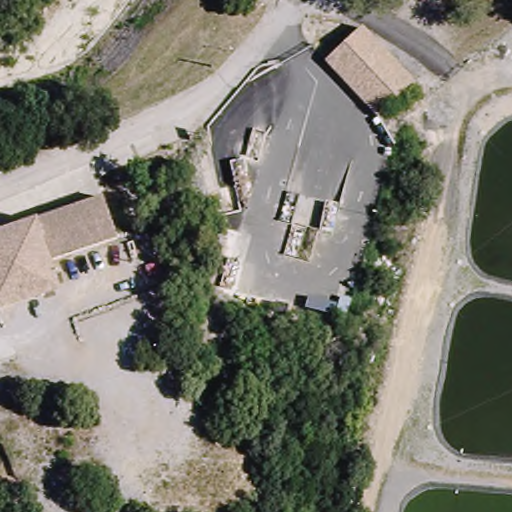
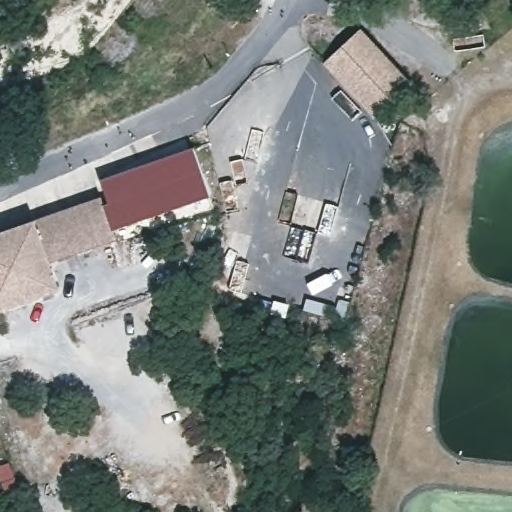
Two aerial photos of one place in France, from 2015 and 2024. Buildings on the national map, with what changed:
unchanged [(354,27),(402,86),(376,109),(364,117),(316,59),(354,27)]
new [(209,196),(108,232),(99,207),(103,206),(109,203),(99,180),(193,150),(209,196)]
unchanged [(113,242),(48,267),(58,293),(0,317),(0,237),(96,200),(113,242)]

